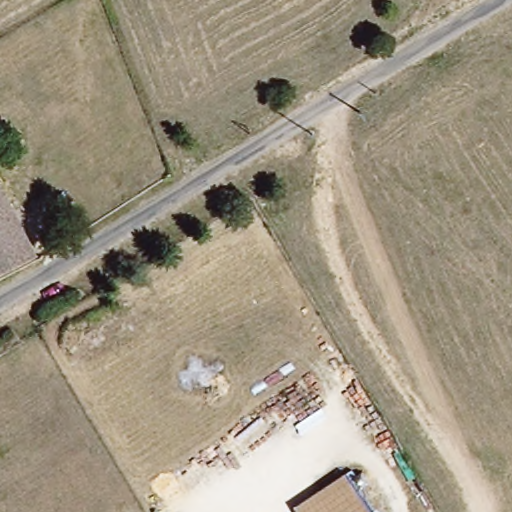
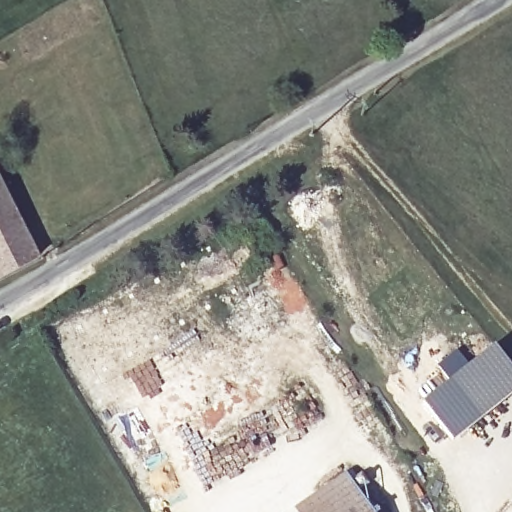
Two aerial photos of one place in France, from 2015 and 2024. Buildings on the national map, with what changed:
unchanged [(0,278),(0,186),(39,256),(0,278)]
new [(449,380),(437,364),(458,347),(469,364),(494,344),(512,366),(512,395),(454,442),(423,401),(449,380)]
unchanged [(368,512),(324,512),(327,510),(315,493),(343,475),(368,512)]
unchanged [(327,510),(324,512),(289,512),(315,493),(327,510)]

